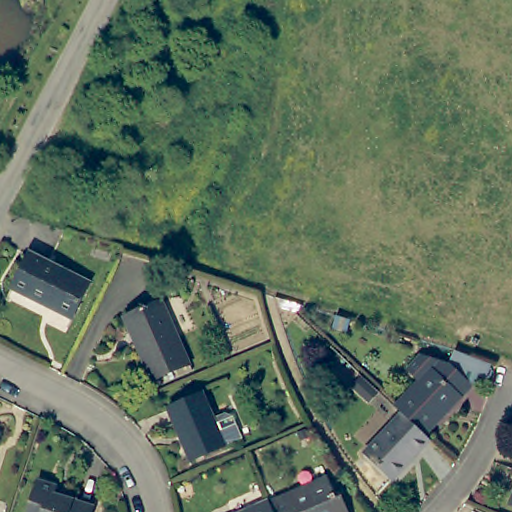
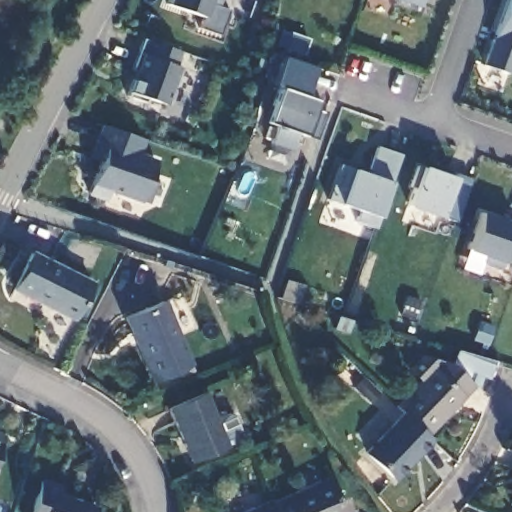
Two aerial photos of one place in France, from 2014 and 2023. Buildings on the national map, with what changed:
new [(220,6),(209,3),(204,16),(166,5),(167,0),(222,0),(220,6)]
new [(417,6),(400,0),(419,0),(417,6)]
new [(506,0),(512,0),(512,71),(511,74),(483,64),(506,0)]
new [(130,91),(132,80),(146,39),(181,50),(176,65),(183,67),(177,87),(172,86),(167,104),(149,98),(147,103),(128,97),(130,91)]
new [(269,145),(277,126),(266,122),(278,86),(271,83),(280,56),(313,68),(303,94),(318,99),(315,108),(325,112),(316,139),(306,135),(297,132),(291,151),(269,145)]
new [(147,138),(141,155),(156,160),(141,202),(111,191),(107,202),(89,195),(94,183),(105,148),(94,145),(101,125),(147,138)]
new [(338,164),(352,168),(368,174),(376,145),(400,153),(390,181),(378,217),(375,227),(355,221),(360,210),(341,203),(327,199),(338,164)]
new [(421,166),(456,178),(457,173),(470,177),(455,222),(442,218),(406,206),(421,166)]
new [(480,212),(503,218),(503,216),(512,219),(512,264),(505,261),(504,263),(502,270),(483,264),(487,256),(467,249),(480,212)]
unchanged [(72,321),(15,291),(32,257),(88,286),(72,321)]
unchanged [(162,302),(189,367),(152,381),(125,317),(162,302)]
unchanged [(423,442),(403,423),(400,420),(394,414),(393,413),(417,388),(405,377),(420,362),(448,371),(452,359),(485,371),(480,385),(466,381),(465,386),(471,393),(423,442)]
unchanged [(382,384),(372,394),(355,378),(365,368),(382,384)]
unchanged [(202,398),(222,448),(189,461),(168,410),(202,398)]
unchanged [(428,447),(391,486),(362,458),(400,420),(403,423),(423,442),(426,444),(428,447)]
unchanged [(0,441),(0,434),(2,435),(0,441)]
unchanged [(56,493),(92,505),(90,512),(28,512),(38,480),(57,484),(56,493)]
unchanged [(335,505),(342,502),(346,512),(272,512),(268,505),(325,482),(335,505)]
unchanged [(509,509),(512,501),(512,510),(509,509)]
unchanged [(272,512),(241,512),(267,502),(268,505),(272,512)]

